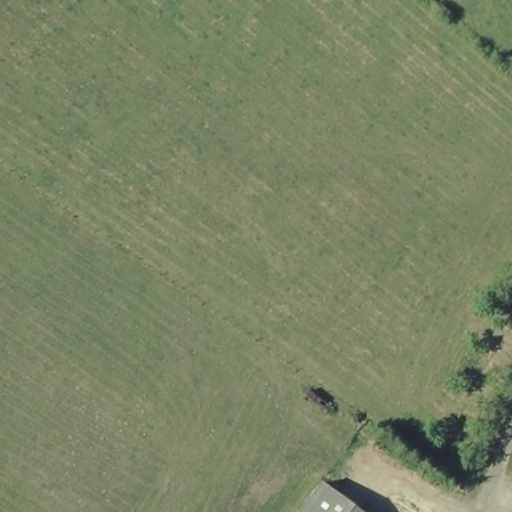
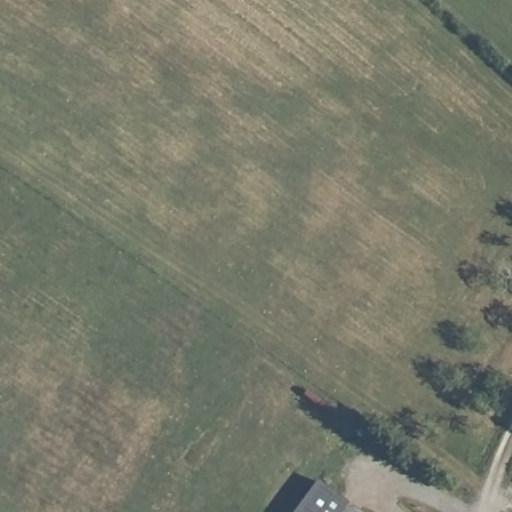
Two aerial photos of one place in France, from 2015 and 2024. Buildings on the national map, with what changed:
unchanged [(363,512),(296,512),(318,481),(363,512)]

